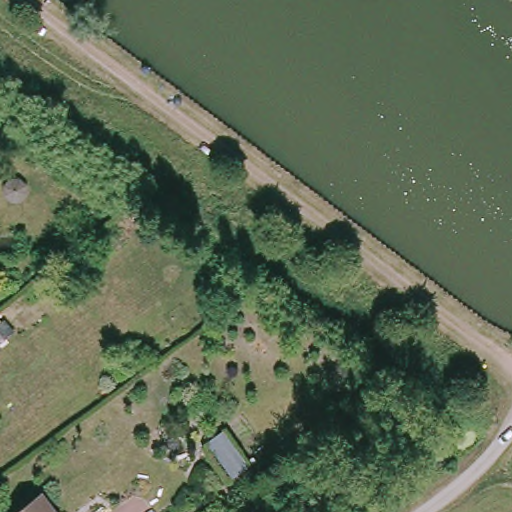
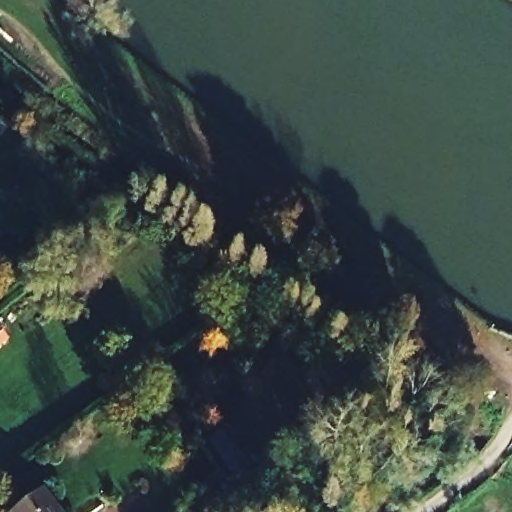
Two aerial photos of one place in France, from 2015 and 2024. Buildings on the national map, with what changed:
unchanged [(59,512),(25,512),(47,496),(59,512)]

